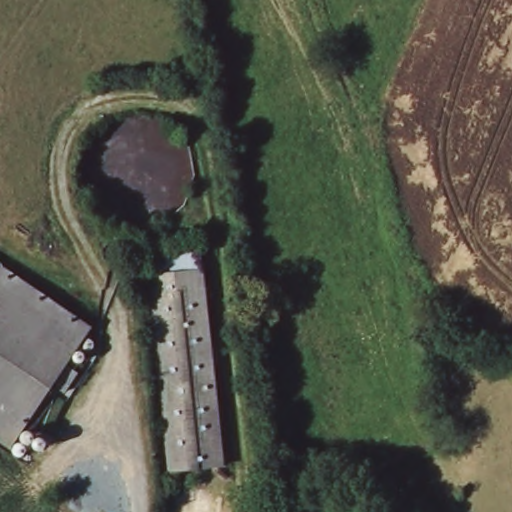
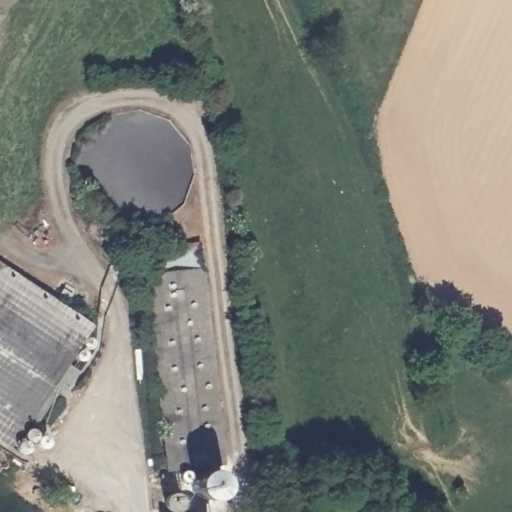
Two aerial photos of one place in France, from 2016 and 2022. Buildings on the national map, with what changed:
unchanged [(154,260),(207,256),(220,458),(167,464),(154,260)]
unchanged [(0,443),(0,271),(87,327),(10,449),(0,443)]

